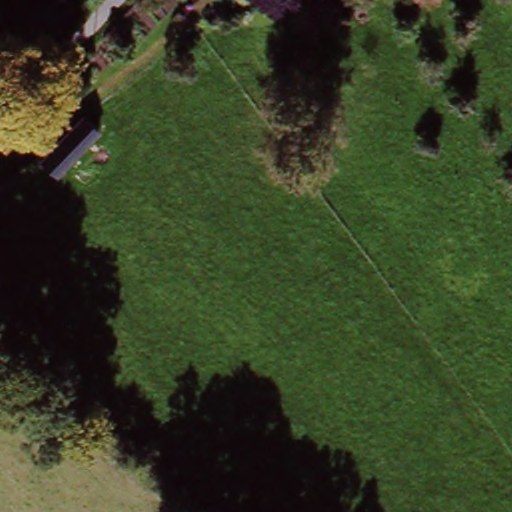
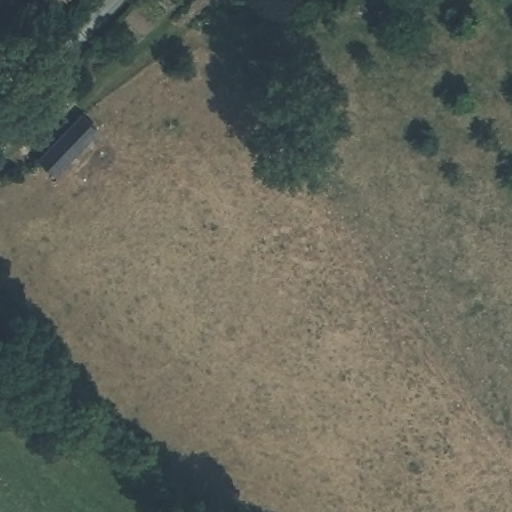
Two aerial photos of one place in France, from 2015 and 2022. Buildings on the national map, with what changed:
unchanged [(55,171),(40,156),(83,113),(98,129),(55,171)]

